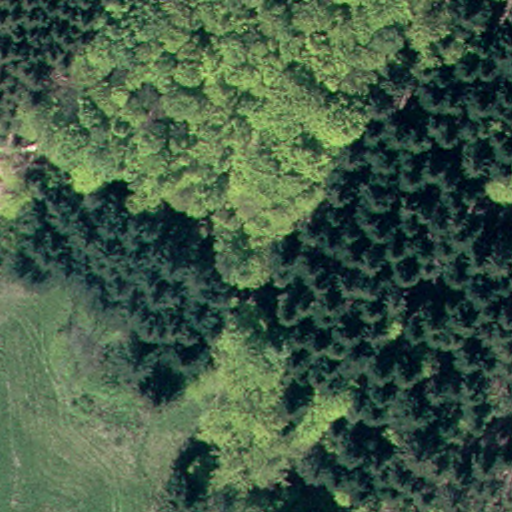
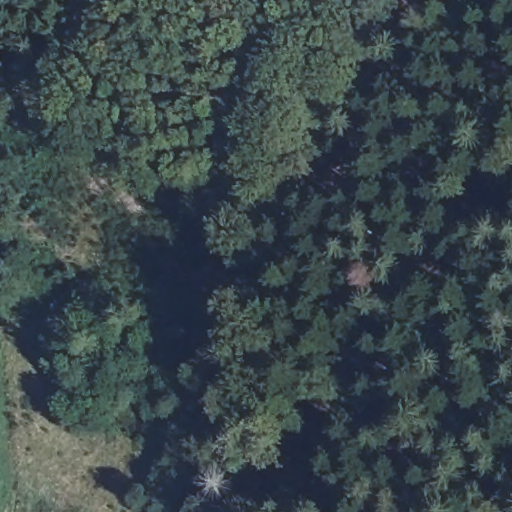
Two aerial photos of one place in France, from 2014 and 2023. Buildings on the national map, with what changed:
[]

